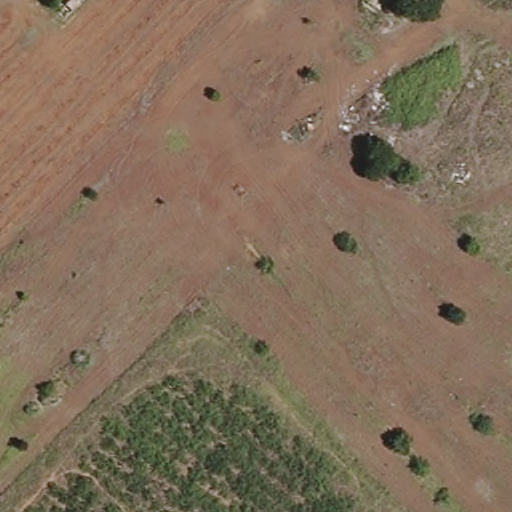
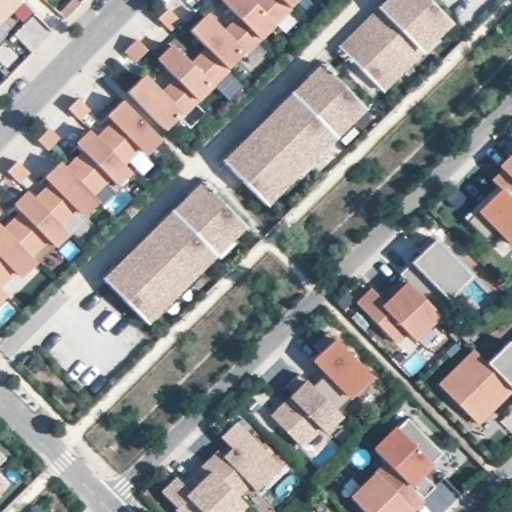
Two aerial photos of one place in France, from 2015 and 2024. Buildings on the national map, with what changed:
new [(23,0),(0,25),(0,0),(23,0)]
unchanged [(67,4),(70,0),(78,0),(81,3),(73,10),(67,4)]
new [(128,94),(147,76),(161,89),(173,79),(155,60),(172,44),(190,61),(206,46),(190,31),(207,15),(222,30),(236,16),(220,0),(251,0),(252,0),(301,0),(164,132),(128,94)]
new [(424,53),(385,93),(336,49),(375,10),(386,0),(429,0),(454,24),(424,53)]
new [(179,19),(170,29),(159,18),(168,8),(179,19)]
new [(148,49),(139,59),(127,48),(137,39),(148,49)]
new [(368,109),(268,209),(222,163),(322,63),(368,109)]
new [(78,99),(88,109),(79,119),(69,108),(78,99)]
new [(162,141),(146,158),(141,151),(126,166),(133,174),(119,189),(112,180),(95,197),(99,202),(84,218),(79,212),(64,227),(71,234),(57,249),(51,241),(33,258),(38,264),(24,279),(17,274),(2,288),(9,296),(0,305),(0,224),(4,228),(19,214),(12,206),(27,191),(34,198),(49,184),(43,178),(60,160),(67,165),(83,149),(77,143),(89,129),(97,136),(111,121),(106,117),(122,101),(162,141)]
new [(47,130),(58,140),(49,150),(38,139),(47,130)]
new [(489,239),(467,221),(478,209),(501,189),(491,180),(503,170),(498,166),(512,153),(512,247),(497,232),(489,239)]
new [(17,161),(27,172),(18,181),(8,170),(17,161)]
new [(249,228),(149,324),(103,279),(202,183),(249,228)]
new [(471,276),(449,297),(436,312),(443,317),(416,343),(408,334),(398,344),(356,302),(370,288),(378,295),(410,262),(434,240),(471,276)]
new [(373,378),(340,413),(344,417),(327,434),(322,430),(306,449),(270,416),(289,396),(304,379),(313,388),(325,375),(312,362),(334,339),(373,378)]
new [(438,384),(472,349),(487,363),(509,342),(512,344),(512,391),(479,425),(438,384)]
new [(444,455),(433,466),(425,475),(436,488),(413,512),(364,512),(349,497),(374,473),(385,462),(372,449),(394,427),(397,429),(408,419),(444,455)]
new [(282,466),(257,490),(252,485),(241,498),(248,504),(240,512),(174,512),(178,508),(160,494),(176,478),(185,483),(218,449),(224,454),(231,447),(220,438),(235,423),(282,466)]
new [(8,459),(0,466),(0,451),(8,459)]
new [(8,483),(0,492),(0,475),(8,483)]

